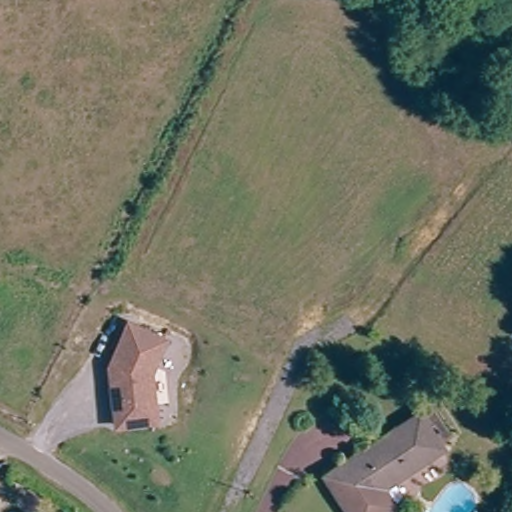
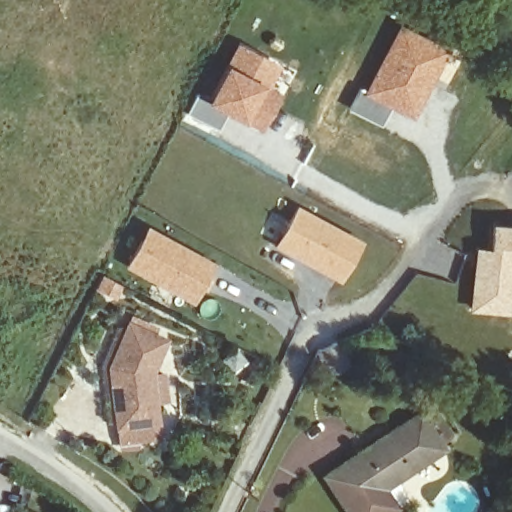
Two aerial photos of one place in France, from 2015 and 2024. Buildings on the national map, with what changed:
new [(359,89),(362,90),(398,21),(448,46),(412,121),(389,110),(381,126),(348,110),(358,91),(359,89)]
new [(205,101),(236,41),(280,63),(269,84),(280,91),(259,133),(226,115),(217,133),(184,117),(196,95),(205,101)]
new [(363,241),(340,284),(272,248),(295,207),(363,241)]
new [(215,263),(192,304),(123,268),(146,226),(215,263)]
new [(491,264),(493,227),(512,229),(512,277),(509,310),(474,308),(477,263),(491,264)]
unchanged [(145,420),(107,424),(101,368),(104,359),(119,325),(154,340),(140,373),(145,420)]
unchanged [(321,481),(330,474),(413,419),(438,457),(384,492),(398,512),(342,512),(321,481)]

